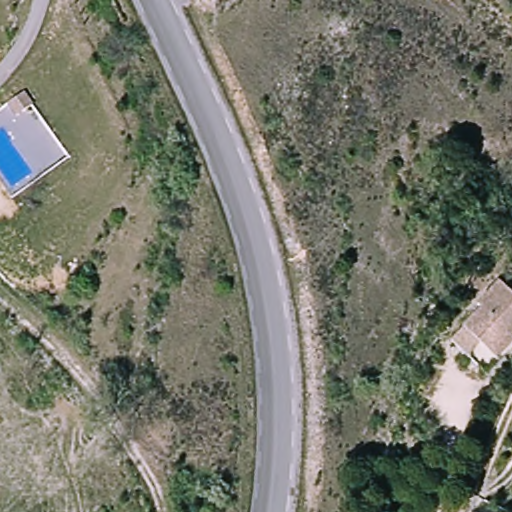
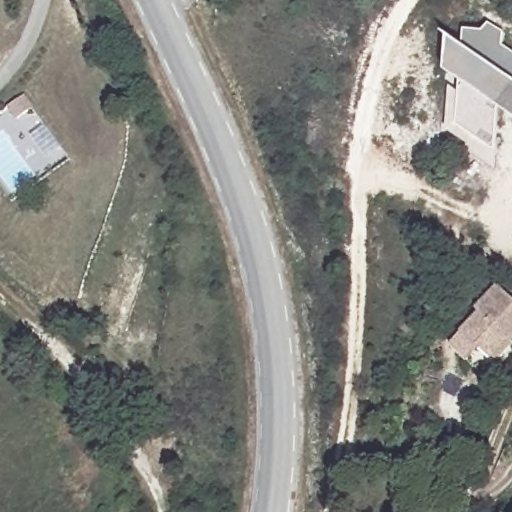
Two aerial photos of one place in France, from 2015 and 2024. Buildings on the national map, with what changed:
new [(447,71),(450,37),(464,47),(466,30),(483,30),(490,23),(505,32),(504,46),(512,52),(512,115),(499,106),(496,151),(490,146),(489,159),(447,132),(452,74),(447,71)]
unchanged [(8,99),(22,87),(32,100),(17,111),(8,99)]
unchanged [(467,337),(480,318),(474,313),(495,285),(512,298),(512,336),(510,339),(512,341),(512,348),(502,362),(492,377),(456,352),(467,337)]

